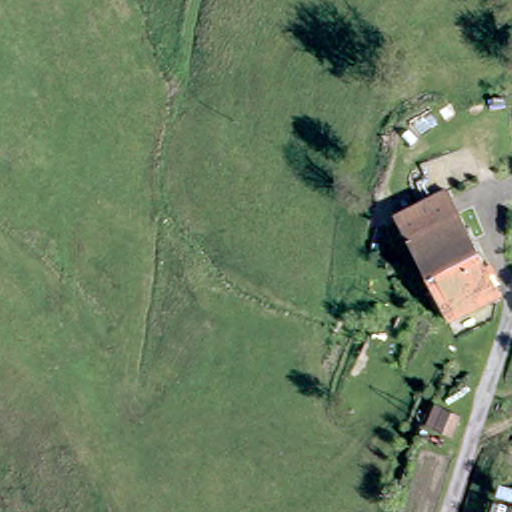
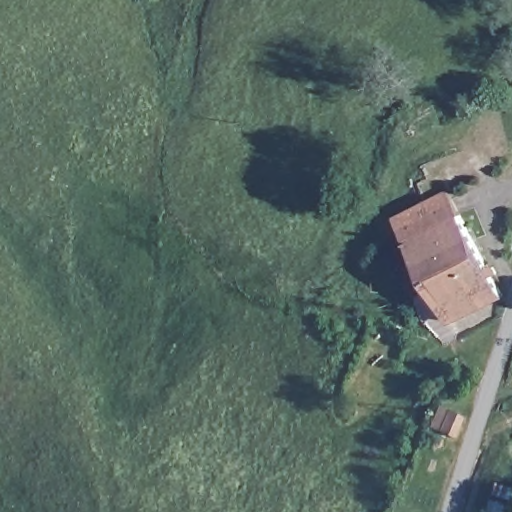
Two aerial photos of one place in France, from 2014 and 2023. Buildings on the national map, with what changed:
unchanged [(447,195),(468,233),(499,297),(448,321),(397,222),(424,206),(447,195)]
unchanged [(449,438),(434,432),(442,412),(458,419),(449,438)]

